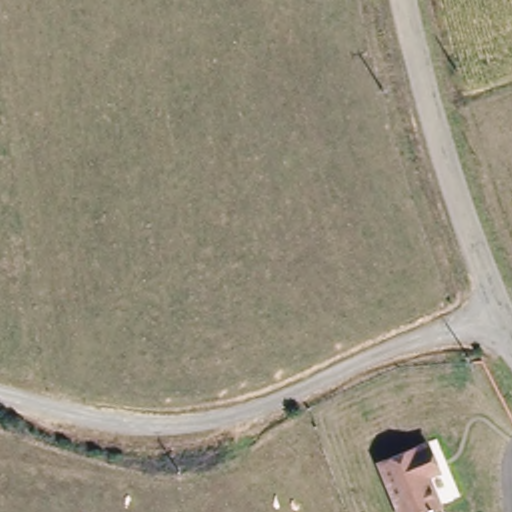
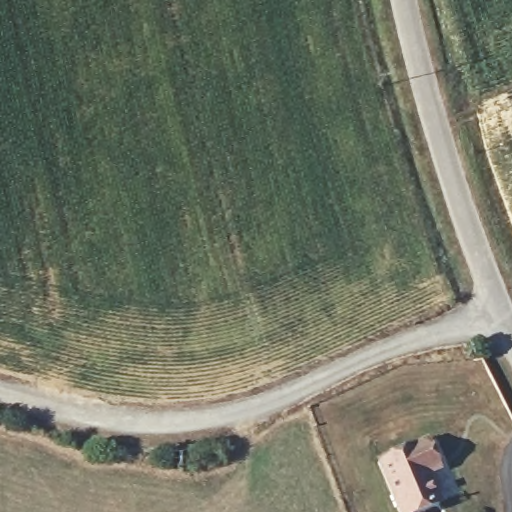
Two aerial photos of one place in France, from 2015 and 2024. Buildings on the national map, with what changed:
unchanged [(437,474),(427,478),(437,507),(423,512),(396,512),(376,462),(426,444),(437,474)]

